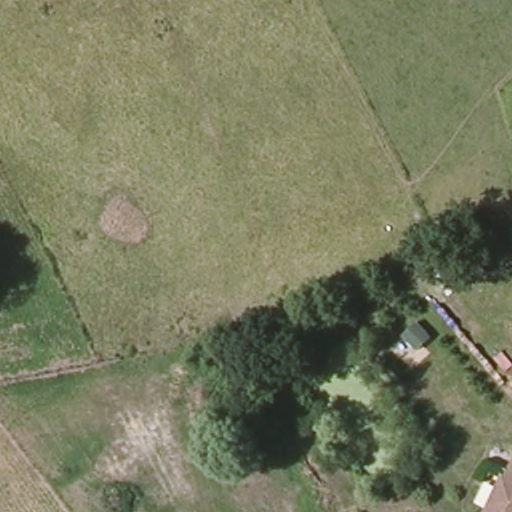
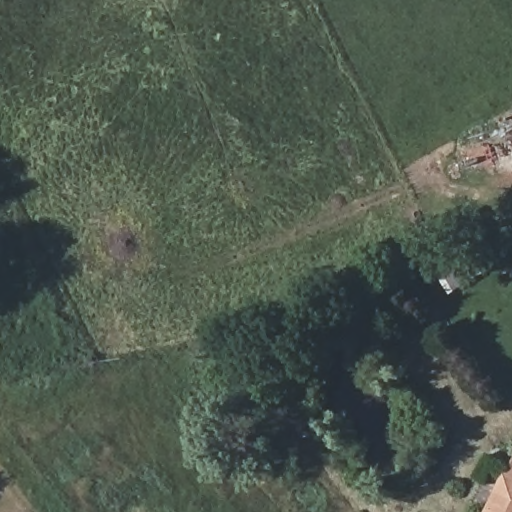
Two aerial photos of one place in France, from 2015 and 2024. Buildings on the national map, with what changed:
unchanged [(512,466),(512,512),(489,512),(507,477),(512,466)]

